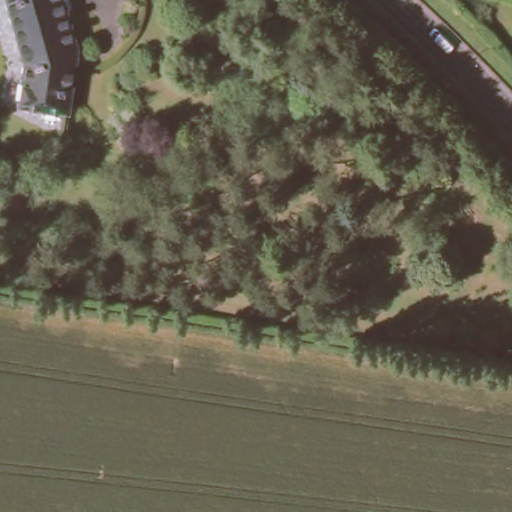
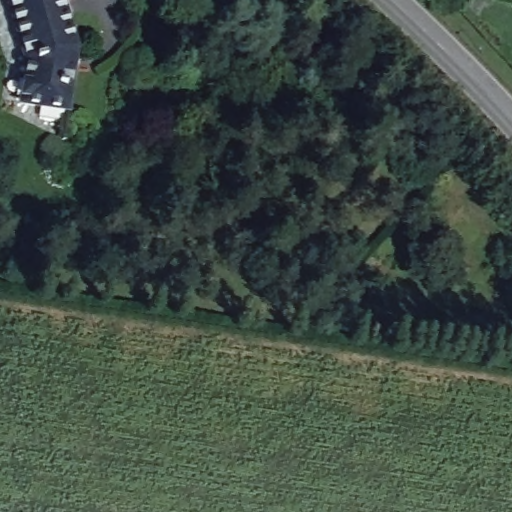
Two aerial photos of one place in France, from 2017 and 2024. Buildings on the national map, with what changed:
unchanged [(78,51),(66,136),(63,136),(67,111),(16,104),(24,56),(8,0),(63,0),(78,51)]

